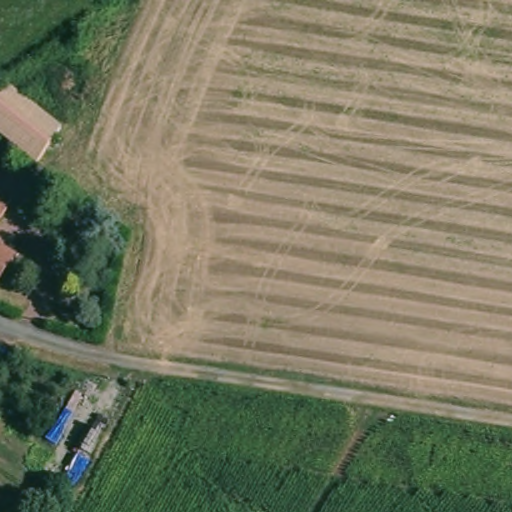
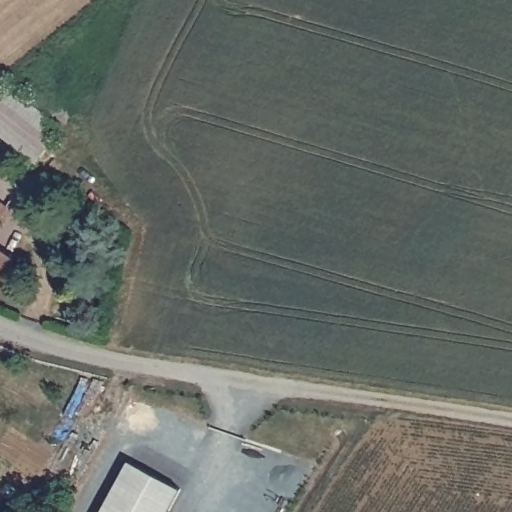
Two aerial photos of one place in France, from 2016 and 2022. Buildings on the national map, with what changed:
unchanged [(62,123),(57,139),(72,149),(56,175),(40,161),(35,172),(22,165),(27,159),(0,139),(0,83),(4,80),(62,123)]
unchanged [(7,205),(0,216),(0,200),(7,205)]
unchanged [(15,258),(0,279),(0,247),(15,258)]
new [(130,462),(181,490),(169,512),(102,512),(130,462)]

